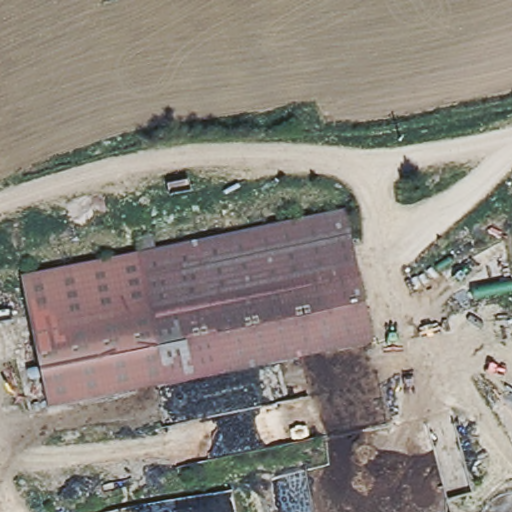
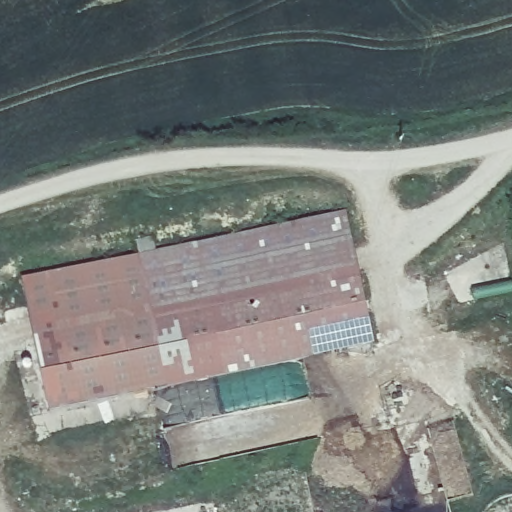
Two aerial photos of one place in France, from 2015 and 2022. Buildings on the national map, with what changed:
unchanged [(347,212),(372,341),(54,403),(25,274),(347,212)]

